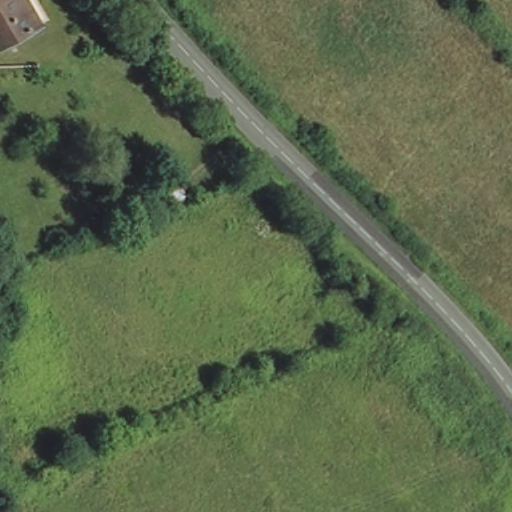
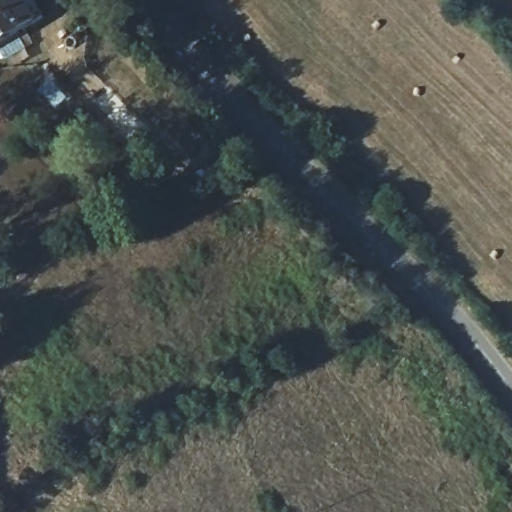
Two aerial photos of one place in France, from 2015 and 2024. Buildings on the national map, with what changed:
unchanged [(0,0),(27,0),(39,17),(0,41),(0,0)]

